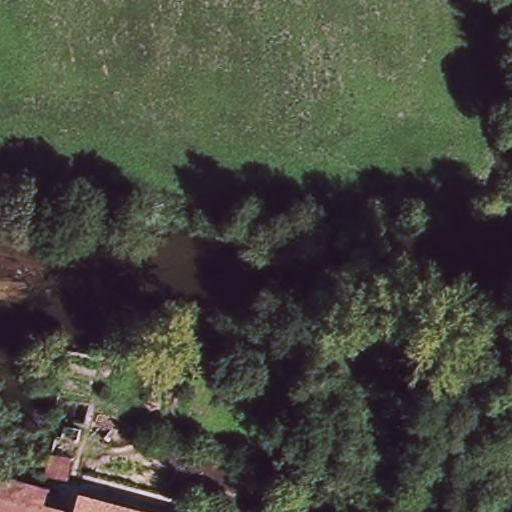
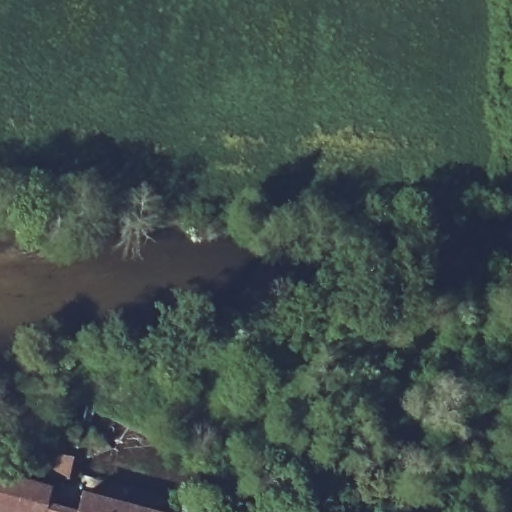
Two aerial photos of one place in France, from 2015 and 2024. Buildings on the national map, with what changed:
unchanged [(46,476),(53,436),(60,437),(61,428),(76,431),(63,494),(42,491),(46,476)]
unchanged [(0,485),(57,501),(78,504),(86,507),(112,512),(0,512),(0,485)]

